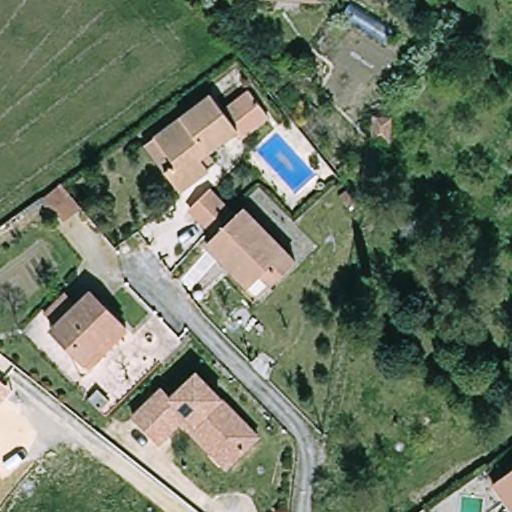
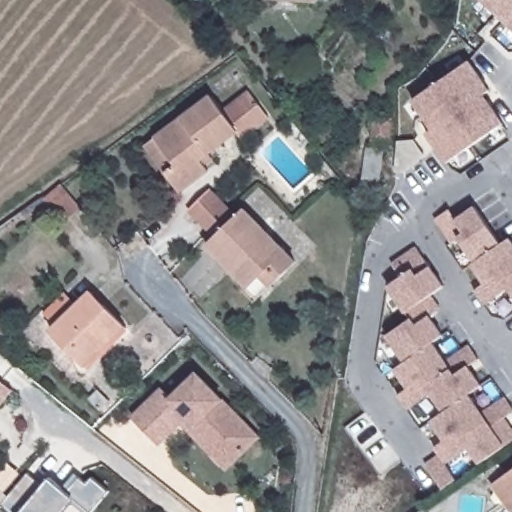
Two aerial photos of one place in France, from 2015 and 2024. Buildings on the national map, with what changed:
unchanged [(320,0),(320,1),(315,0),(320,0)]
new [(481,0),(512,0),(512,29),(481,0)]
new [(433,129),(412,100),(470,61),(491,91),(485,95),(505,124),(447,165),(427,134),(433,129)]
unchanged [(210,170),(180,191),(166,172),(146,143),(158,135),(214,95),(226,111),(254,91),(260,101),(273,119),(245,139),(241,133),(211,153),(215,159),(207,165),(210,170)]
unchanged [(79,202),(65,215),(42,192),(58,180),(79,202)]
unchanged [(236,215),(217,233),(194,209),(213,191),(236,215)]
new [(485,285),(471,265),(475,263),(460,239),(451,245),(434,219),(449,209),(456,219),(475,206),(501,244),(511,238),(512,240),(512,295),(509,290),(485,306),(474,291),(485,285)]
unchanged [(299,266),(280,284),(257,305),(249,296),(253,292),(212,248),(250,213),(299,266)]
new [(429,265),(430,265),(445,286),(432,295),(441,309),(431,316),(444,335),(434,342),(447,360),(469,344),(479,359),(470,366),(483,385),(470,394),(483,412),(505,396),(512,406),(512,413),(506,418),(512,427),(512,442),(507,447),(480,465),(470,449),(446,465),(458,480),(443,490),(425,465),(439,455),(435,448),(445,442),(431,421),(443,412),(431,396),(408,411),(398,396),(408,390),(395,370),(405,362),(387,336),(410,320),(406,314),(387,286),(400,278),(391,263),(416,246),(429,265)]
unchanged [(129,327),(88,365),(55,330),(59,325),(47,313),(69,292),(81,305),(96,291),(129,327)]
unchanged [(165,392),(175,403),(201,378),(262,443),(229,474),(184,426),(162,448),(135,419),(165,392)]
unchanged [(0,384),(12,393),(0,403),(0,384)]
unchanged [(86,397),(96,387),(108,400),(99,409),(86,397)]
new [(366,413),(403,462),(382,478),(345,429),(366,413)]
unchanged [(497,484),(502,481),(512,473),(512,506),(497,484)]
unchanged [(428,510),(429,512),(425,512),(428,510)]

